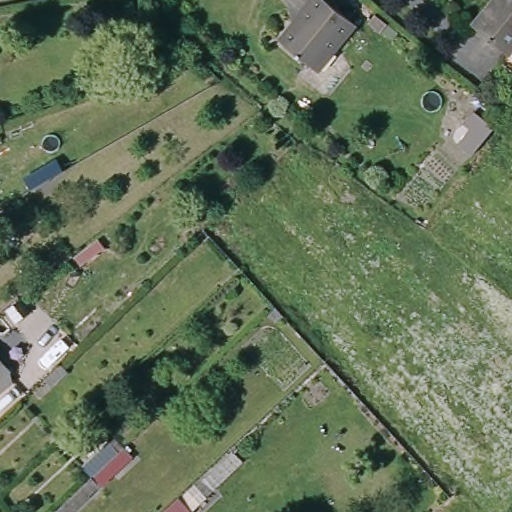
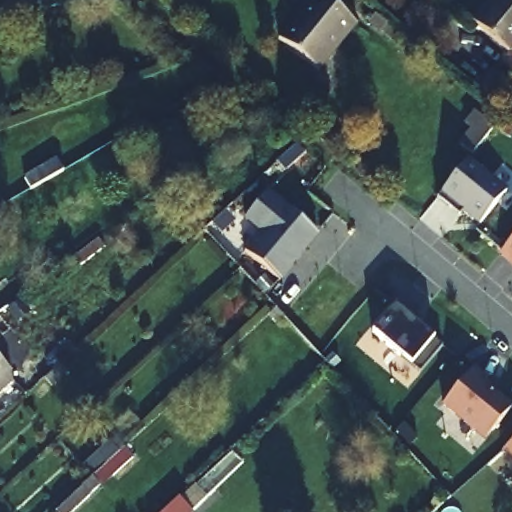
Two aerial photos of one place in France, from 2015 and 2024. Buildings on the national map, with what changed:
unchanged [(293,25),(294,27),(303,17),(299,15),(310,0),(326,0),(356,25),(336,47),(331,54),(317,71),(279,40),(293,25)]
unchanged [(498,45),(496,46),(464,22),(482,0),(512,0),(512,51),(506,50),(498,45)]
new [(475,110),(494,125),(471,155),(458,145),(471,129),(464,123),(475,110)]
new [(479,225),(454,205),(450,210),(437,199),(468,161),(506,192),(479,225)]
new [(243,253),(260,234),(243,220),(266,193),(316,235),(306,246),(307,247),(279,282),(243,253)]
new [(512,240),(512,266),(499,255),(512,240)]
new [(434,340),(443,346),(420,372),(411,365),(373,334),(394,308),(434,340)]
unchanged [(0,393),(0,359),(10,371),(0,380),(6,387),(0,393)]
new [(471,369),(485,381),(481,386),(493,397),(497,396),(511,408),(483,440),(441,405),(471,369)]
unchanged [(125,460),(98,485),(73,460),(106,429),(125,460)]
new [(512,446),(512,463),(504,453),(512,446)]
unchanged [(55,512),(91,479),(99,488),(73,512),(55,512)]
unchanged [(186,508),(182,512),(154,512),(173,495),(186,508)]

